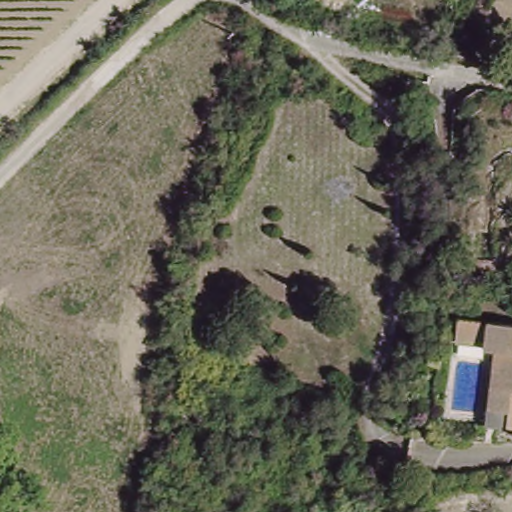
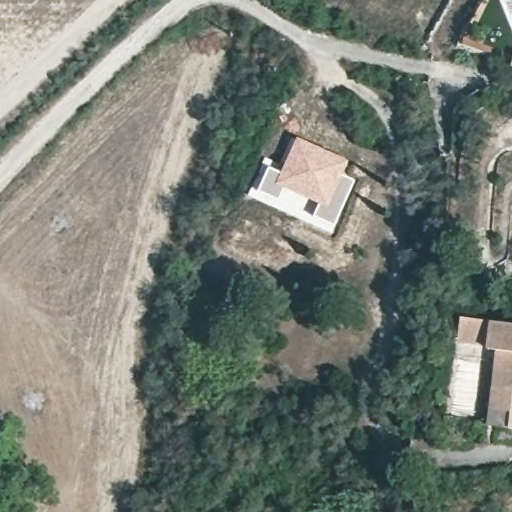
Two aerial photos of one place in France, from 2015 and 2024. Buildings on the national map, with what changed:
new [(281,173),(297,138),(350,161),(343,175),(355,181),(335,225),(313,217),(320,204),(285,189),(280,201),(258,192),(268,168),(281,173)]
unchanged [(457,319),(512,321),(512,389),(502,389),(503,351),(493,350),(493,348),(456,346),(456,333),(457,319)]
unchanged [(512,389),(512,408),(511,427),(491,427),(493,350),(503,351),(502,389),(512,389)]
unchanged [(512,408),(512,427),(511,427),(512,408)]

